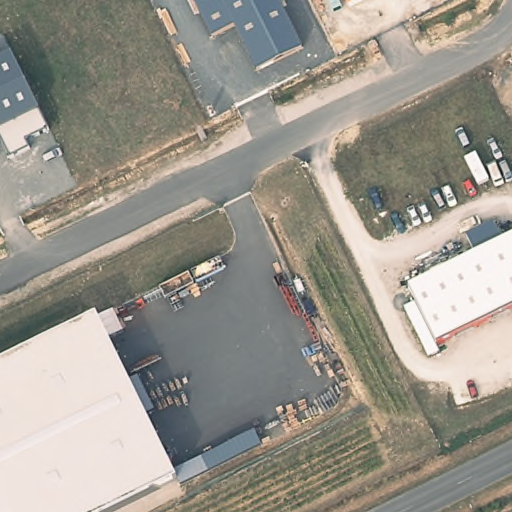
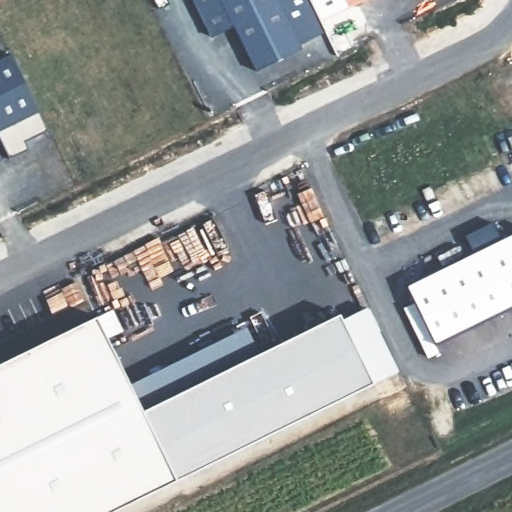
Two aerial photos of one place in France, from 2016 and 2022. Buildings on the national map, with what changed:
unchanged [(302,49),(255,71),(234,26),(211,37),(193,0),(278,0),(302,49)]
unchanged [(350,8),(346,0),(366,0),(350,8)]
unchanged [(11,54),(40,111),(49,130),(26,140),(30,148),(10,158),(0,140),(0,60),(11,54)]
unchanged [(465,236),(493,222),(501,240),(512,235),(512,310),(438,346),(408,286),(474,253),(465,236)]
new [(142,410),(130,383),(246,325),(259,352),(338,313),(341,319),(366,306),(398,371),(374,383),(176,479),(142,410)]
unchanged [(110,512),(0,512),(0,363),(96,315),(176,479),(110,512)]

